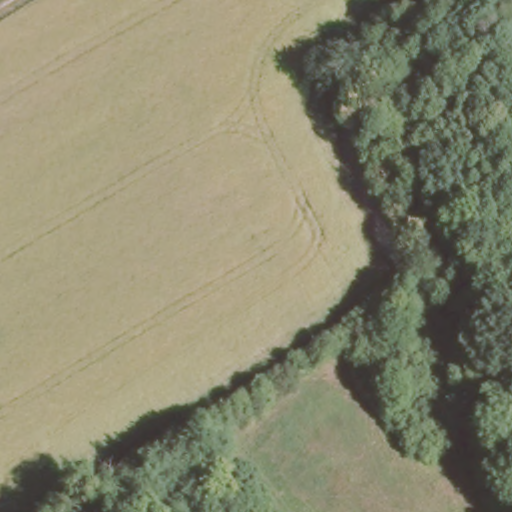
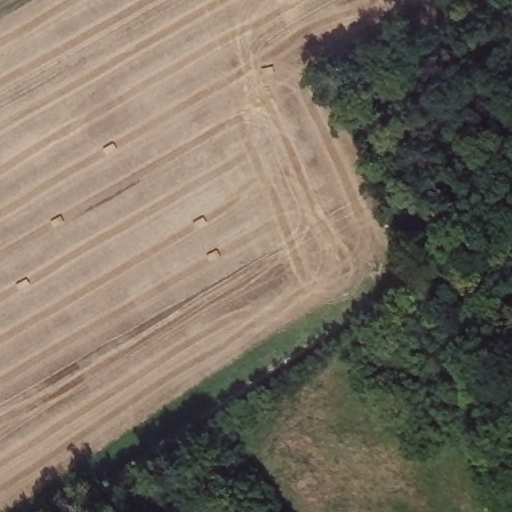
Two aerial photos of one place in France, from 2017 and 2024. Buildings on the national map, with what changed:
unchanged [(429,79),(459,60),(469,85),(439,100),(429,79)]

